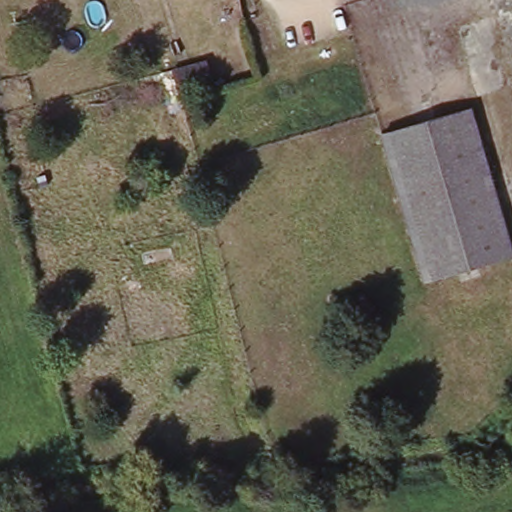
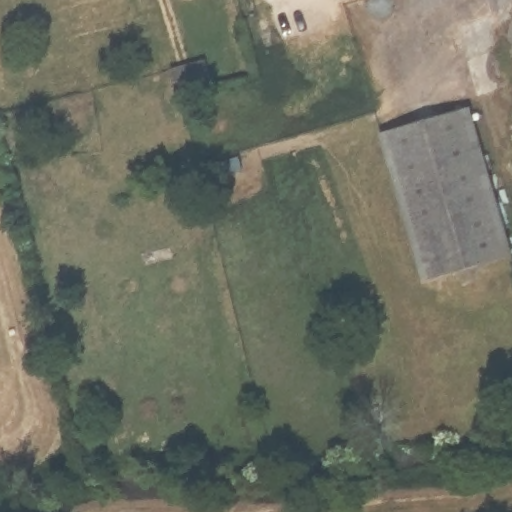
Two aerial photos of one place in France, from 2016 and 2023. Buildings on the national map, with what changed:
unchanged [(207,59),(214,90),(177,99),(168,69),(207,59)]
unchanged [(474,111),(512,243),(512,257),(423,285),(378,136),(474,111)]

